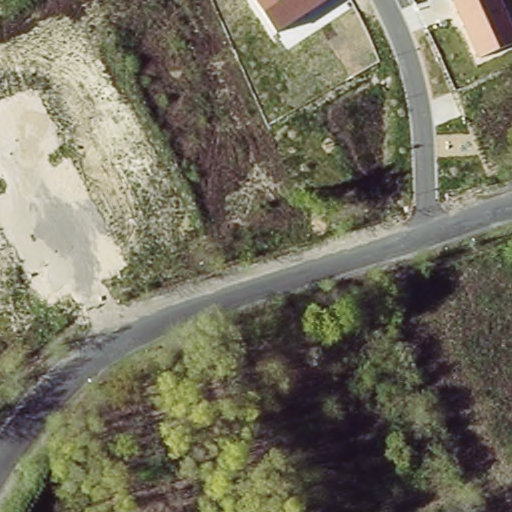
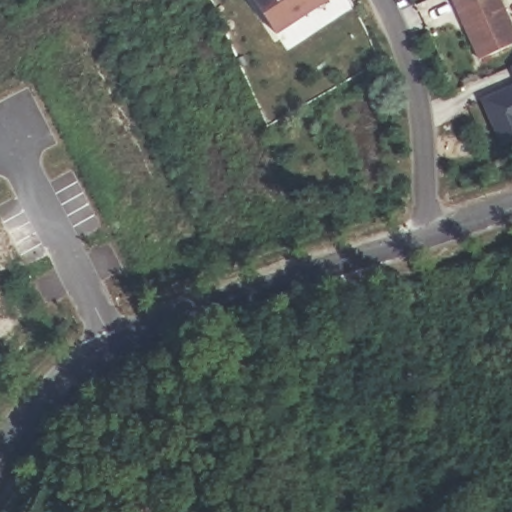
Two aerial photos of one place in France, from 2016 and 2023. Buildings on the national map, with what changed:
unchanged [(278,35),(255,0),(331,0),(278,35)]
unchanged [(512,20),(512,44),(480,59),(453,0),(503,0),(512,20)]
new [(512,63),(512,75),(507,65),(512,63)]
new [(502,92),(512,88),(512,137),(499,142),(479,98),(500,88),(502,92)]

